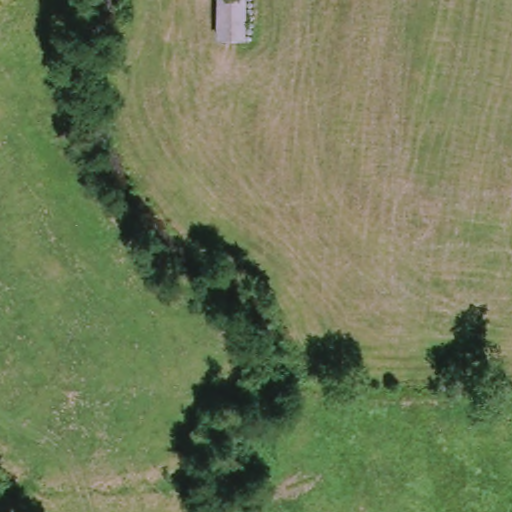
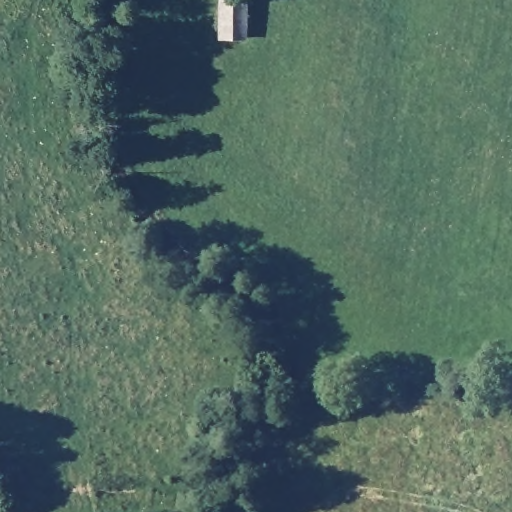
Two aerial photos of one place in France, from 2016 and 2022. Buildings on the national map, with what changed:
unchanged [(244,46),(217,42),(221,0),(246,0),(244,46)]

